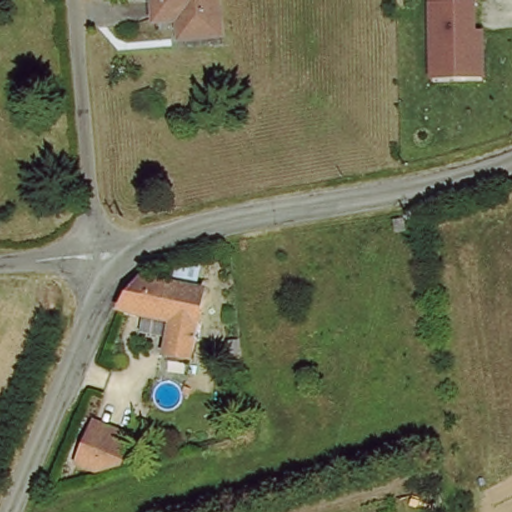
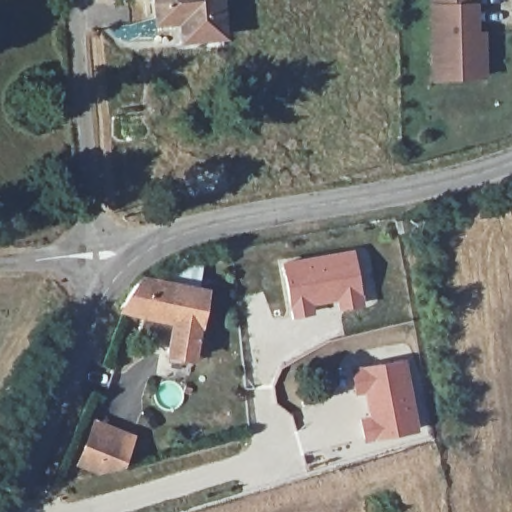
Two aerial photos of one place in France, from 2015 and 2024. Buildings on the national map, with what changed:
unchanged [(182,45),(181,11),(163,12),(162,0),(226,0),(229,42),(182,45)]
unchanged [(484,34),(484,85),(430,86),(427,0),(475,0),(477,34),(484,34)]
new [(354,246),(364,302),(336,307),(334,300),(313,304),(314,313),(291,317),(279,259),(354,246)]
unchanged [(172,321),(122,311),(127,299),(147,279),(207,291),(194,362),(166,357),(172,321)]
new [(406,358),(417,430),(360,441),(355,414),(365,412),(360,395),(354,396),(349,367),(406,358)]
unchanged [(139,436),(125,474),(95,478),(70,467),(93,418),(139,436)]

